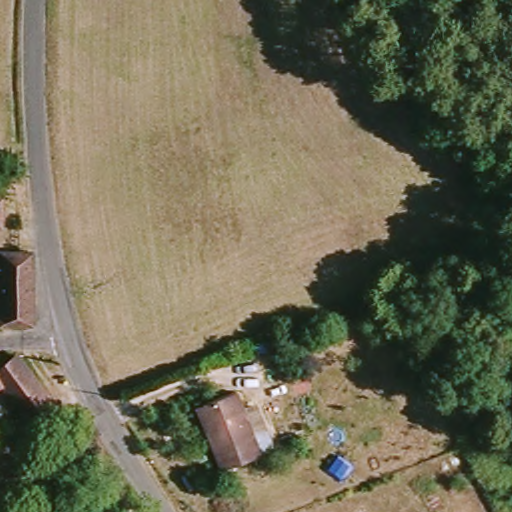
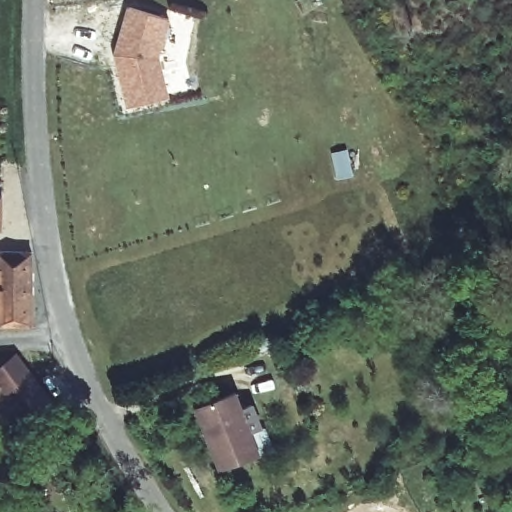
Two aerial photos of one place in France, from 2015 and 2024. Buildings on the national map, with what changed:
new [(127,106),(115,54),(128,7),(170,16),(159,55),(170,95),(127,106)]
unchanged [(0,212),(1,224),(0,224),(0,212)]
unchanged [(0,327),(0,257),(9,256),(30,254),(31,327),(0,327)]
unchanged [(25,423),(0,389),(0,364),(13,356),(48,404),(25,423)]
unchanged [(235,404),(246,398),(258,421),(250,426),(262,446),(221,469),(202,438),(205,436),(190,411),(197,407),(227,390),(235,404)]

